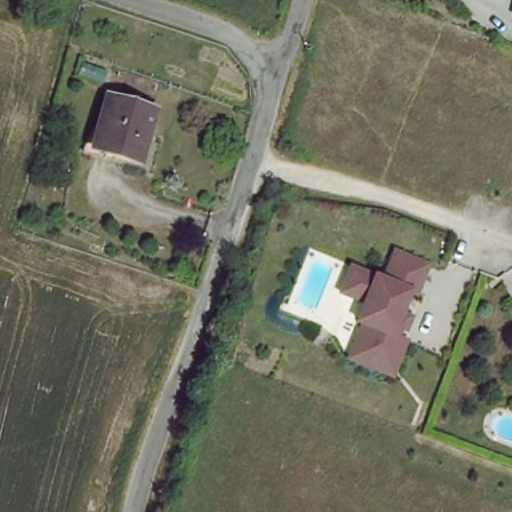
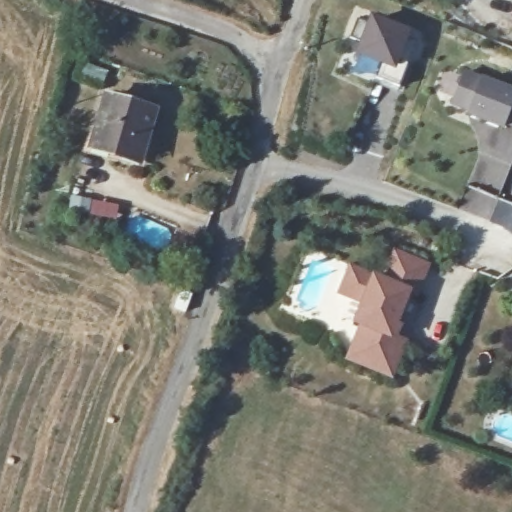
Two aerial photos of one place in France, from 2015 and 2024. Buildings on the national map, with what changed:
new [(381,65),(354,54),(361,41),(350,36),(358,19),(369,23),(371,14),(412,30),(409,38),(416,40),(399,86),(376,78),(381,65)]
new [(504,125),(503,130),(467,115),(468,111),(451,104),(465,69),(484,76),(512,87),(512,128),(504,125)]
unchanged [(160,116),(146,162),(109,151),(93,147),(107,99),(123,104),(160,116)]
unchanged [(346,352),(351,338),(361,318),(354,315),(363,296),(354,293),(349,291),(336,286),(348,260),(361,266),(364,267),(383,275),(394,247),(427,260),(415,289),(408,287),(399,307),(409,312),(404,324),(398,321),(394,330),(404,334),(396,355),(389,369),(346,352)]

